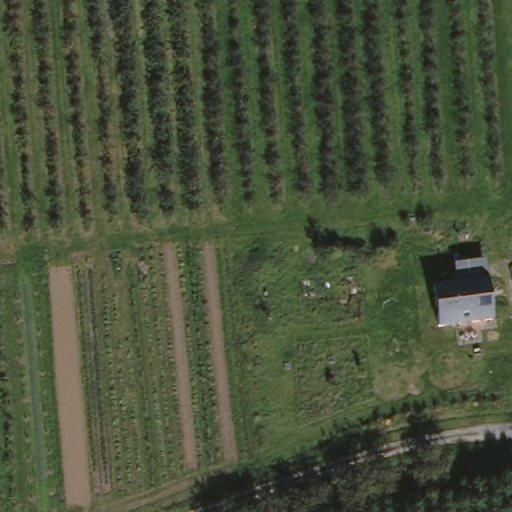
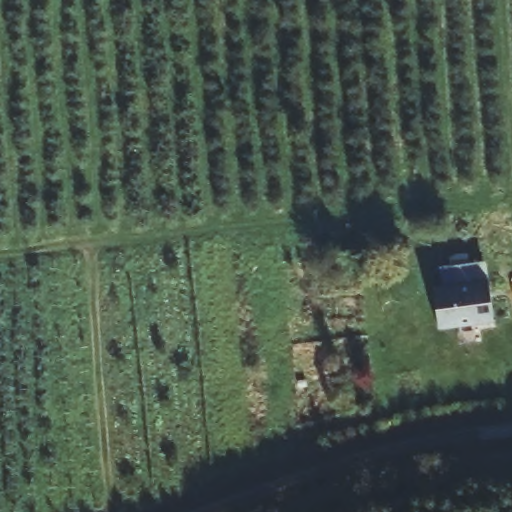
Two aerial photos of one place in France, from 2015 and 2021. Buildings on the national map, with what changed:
unchanged [(488,261),(496,317),(437,324),(432,286),(459,282),(459,263),(488,261)]

